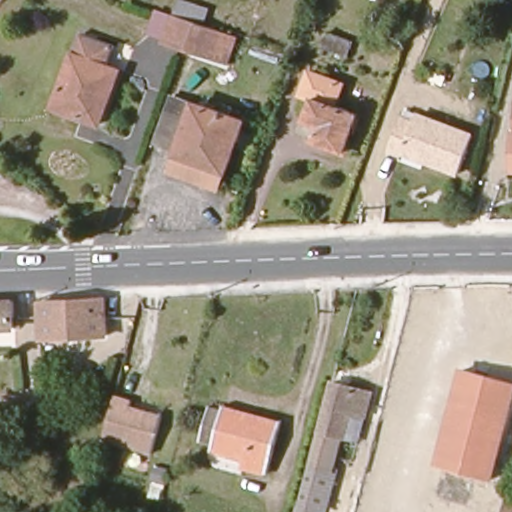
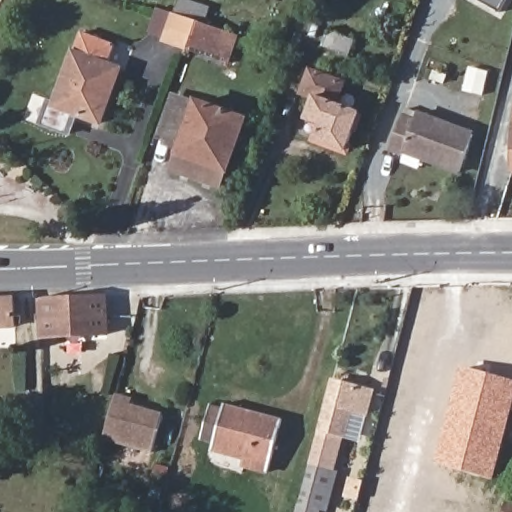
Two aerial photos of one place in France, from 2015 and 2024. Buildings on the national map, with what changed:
unchanged [(164,39),(171,17),(174,18),(178,0),(180,0),(210,9),(205,26),(220,31),(211,57),(187,48),(164,39)]
new [(477,0),(507,0),(500,14),(477,0)]
unchanged [(54,93),(78,27),(115,40),(107,61),(119,65),(100,119),(75,110),(51,101),(54,93)]
unchanged [(327,51),(332,37),(356,47),(351,60),(327,51)]
unchanged [(346,76),(338,98),(363,109),(350,145),(318,133),(323,117),(310,111),(316,91),(305,86),(315,64),(346,76)]
unchanged [(173,156),(195,94),(244,112),(221,172),(173,156)]
unchanged [(475,129),(460,166),(426,155),(428,151),(405,143),(403,148),(389,143),(401,110),(425,119),(427,111),(475,129)]
unchanged [(104,295),(105,335),(40,337),(39,298),(104,295)]
unchanged [(15,304),(17,331),(0,332),(0,304),(15,304)]
unchanged [(465,367),(474,370),(512,379),(512,405),(494,477),(448,466),(440,464),(465,367)]
unchanged [(376,387),(371,407),(362,440),(342,440),(340,445),(343,445),(335,478),(331,477),(307,471),(331,376),(376,387)]
unchanged [(107,441),(119,398),(138,404),(136,411),(162,417),(153,453),(107,441)]
unchanged [(249,454),(247,460),(209,452),(218,410),(258,420),(259,417),(279,422),(270,460),(249,454)]
unchanged [(331,477),(321,512),(296,512),(307,471),(331,477)]
unchanged [(512,502),(512,512),(504,512),(507,501),(512,502)]

